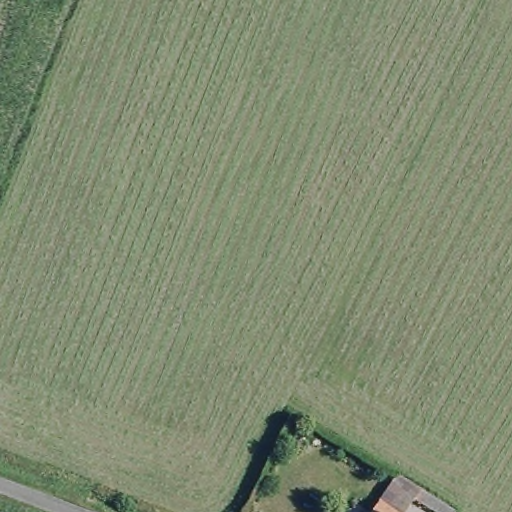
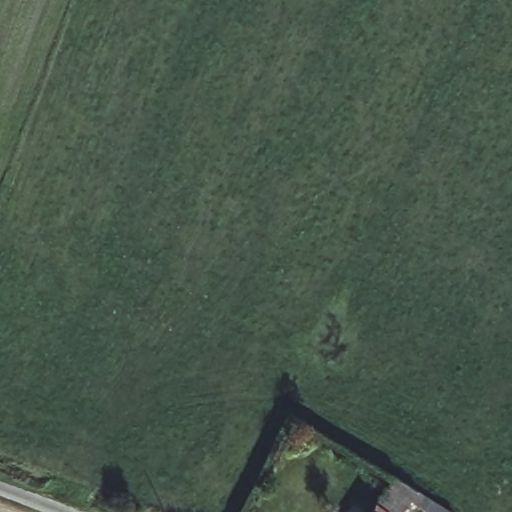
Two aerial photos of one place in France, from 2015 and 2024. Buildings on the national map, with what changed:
unchanged [(455,510),(454,512),(427,512),(411,505),(406,512),(372,512),(395,476),(455,510)]

